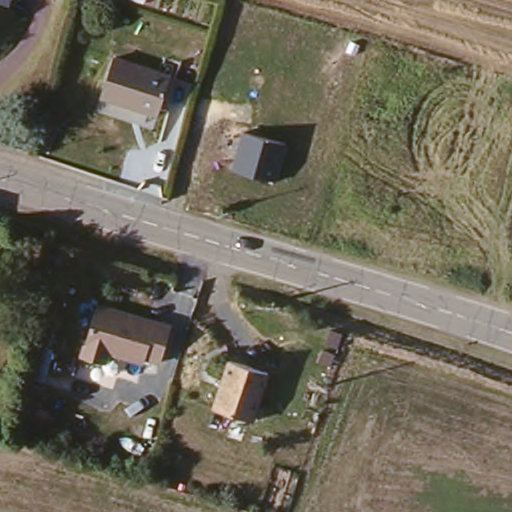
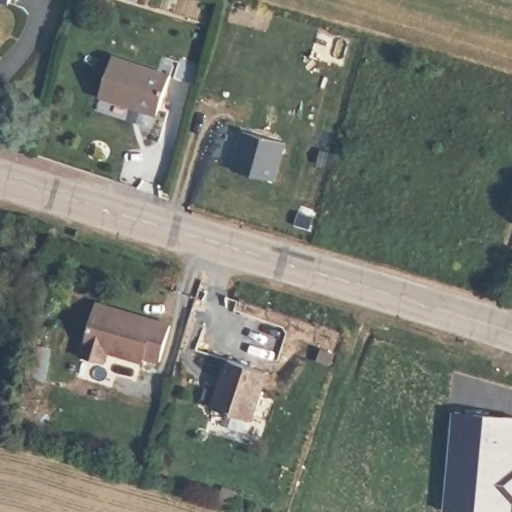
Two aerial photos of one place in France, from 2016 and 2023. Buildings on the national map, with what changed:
unchanged [(169,73),(156,111),(100,92),(113,55),(169,73)]
new [(286,145),(276,181),(233,170),(243,132),(286,145)]
unchanged [(168,325),(156,366),(107,355),(104,362),(81,355),(98,305),(168,325)]
unchanged [(267,374),(254,423),(211,410),(226,362),(267,374)]
new [(512,512),(445,512),(454,411),(512,418),(512,512)]

